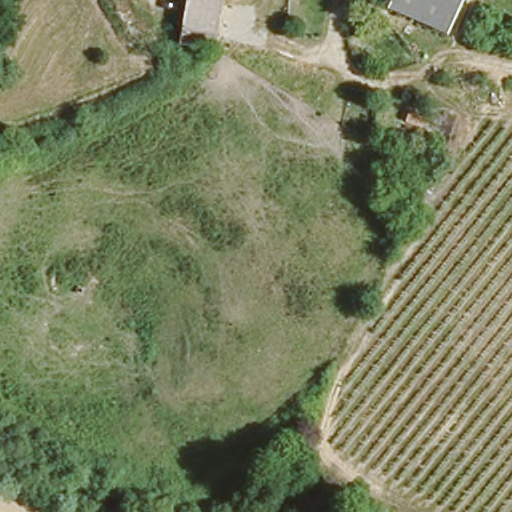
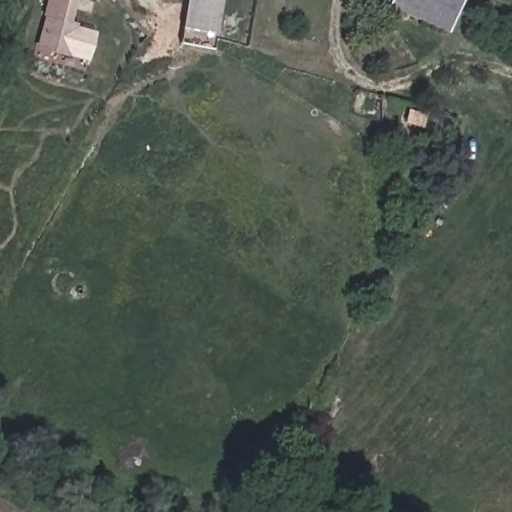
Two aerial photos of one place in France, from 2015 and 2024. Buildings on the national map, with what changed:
new [(71,25),(96,33),(85,63),(35,49),(49,0),(78,0),(71,25)]
unchanged [(187,0),(223,0),(217,35),(195,29),(185,27),(182,26),(187,0)]
unchanged [(438,36),(383,1),(383,0),(460,0),(449,18),(438,36)]
unchanged [(400,120),(396,133),(380,128),(384,116),(400,120)]

